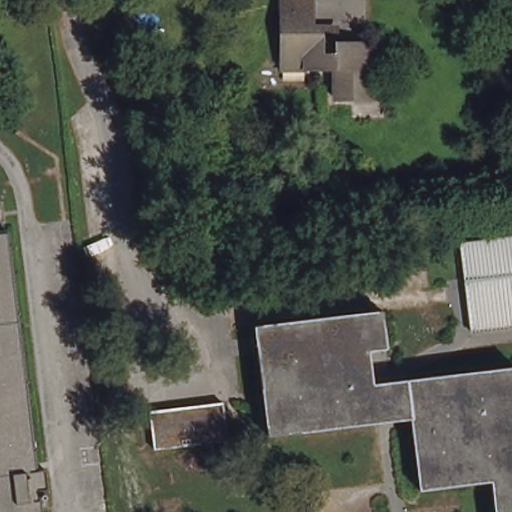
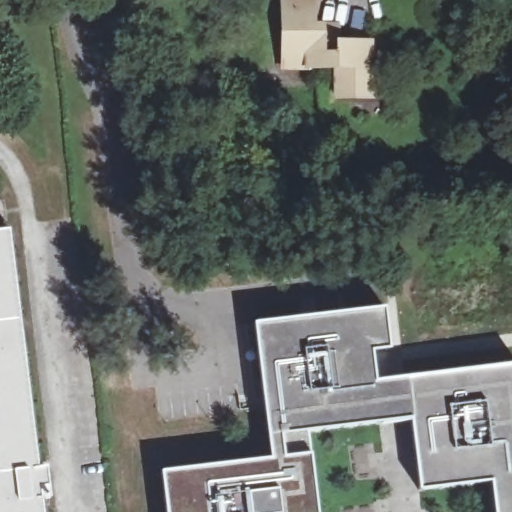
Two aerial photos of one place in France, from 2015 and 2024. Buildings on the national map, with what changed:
unchanged [(310,31),(335,32),(335,47),(366,47),(367,71),(374,71),(375,100),(331,101),(331,71),(280,71),(279,2),(308,1),(310,31)]
unchanged [(35,471),(42,470),(47,510),(40,511),(40,512),(0,512),(0,234),(6,233),(35,471)]
demolished [(480,335),(475,296),(483,295),(482,283),(474,285),(468,247),(512,242),(512,330),(480,335)]
unchanged [(393,348),(377,350),(381,381),(512,366),(512,512),(502,512),(498,479),(426,489),(416,418),(275,435),(265,353),(262,335),(261,324),(389,308),(393,348)]
new [(262,335),(265,353),(275,435),(306,431),(310,454),(317,512),(165,512),(160,472),(270,458),(254,325),(261,324),(262,335)]
demolished [(224,448),(152,458),(147,421),(220,411),(224,448)]

